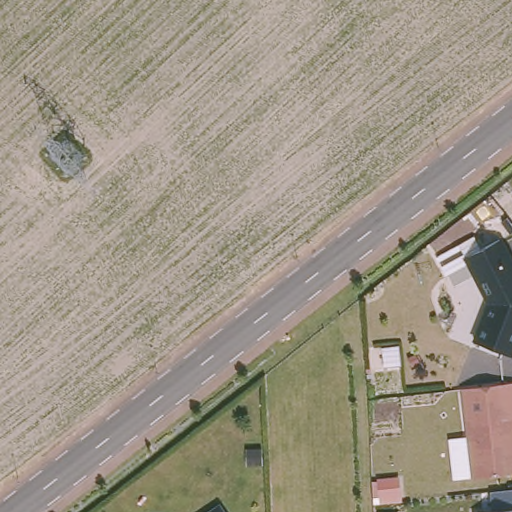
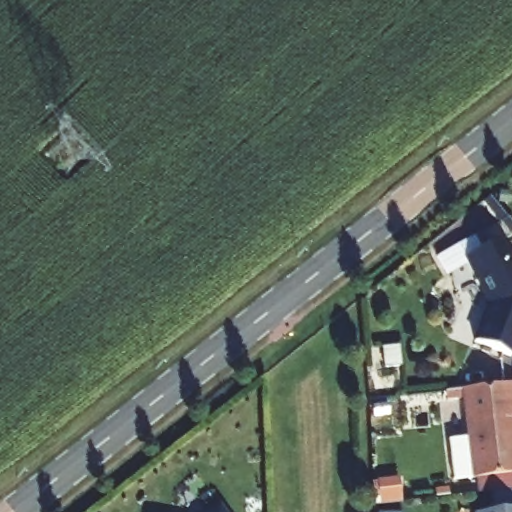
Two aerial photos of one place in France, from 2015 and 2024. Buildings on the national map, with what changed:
unchanged [(512,264),(512,352),(510,356),(474,342),(489,303),(465,257),(500,240),(512,264)]
unchanged [(511,418),(512,426),(512,474),(473,478),(463,389),(512,383),(512,418),(511,418)]
unchanged [(218,507),(222,512),(211,512),(218,507)]
unchanged [(512,509),(512,512),(483,512),(512,509)]

